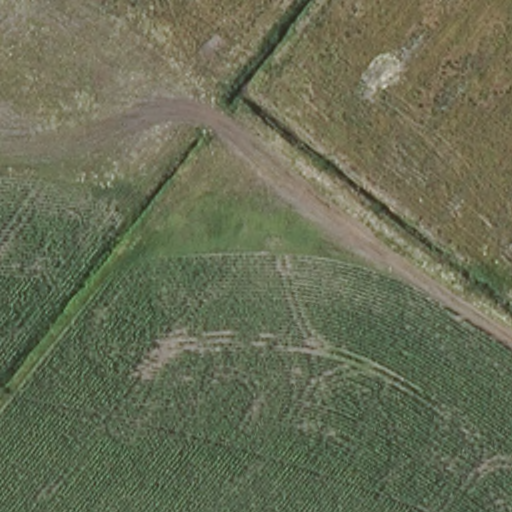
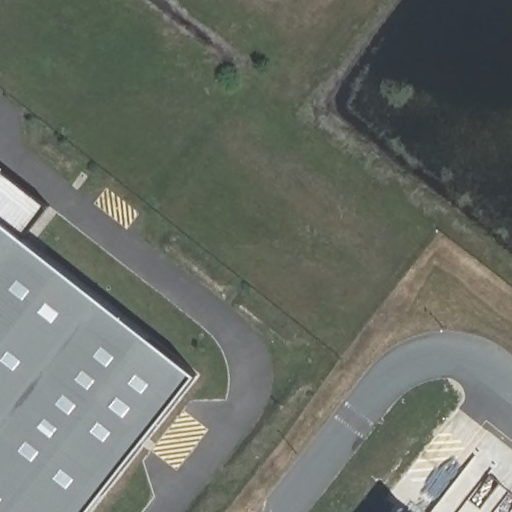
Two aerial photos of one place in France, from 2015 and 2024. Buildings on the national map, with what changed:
new [(29,237),(203,373),(94,512),(0,512),(0,163),(53,205),(29,237)]

